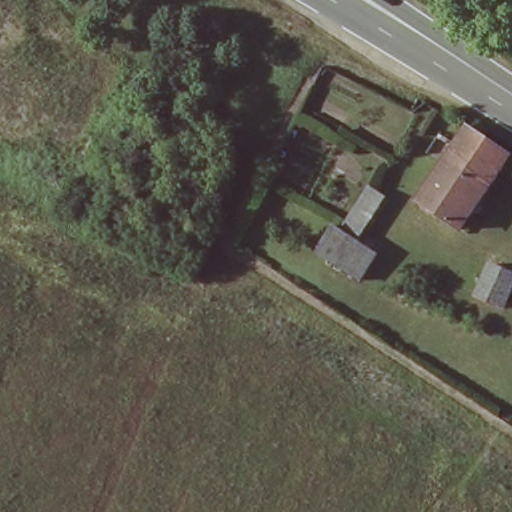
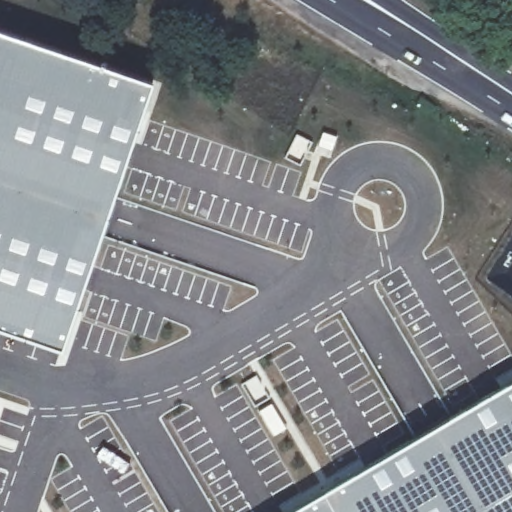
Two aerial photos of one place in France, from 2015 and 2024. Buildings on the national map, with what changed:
new [(113,203),(61,353),(19,340),(0,333),(0,30),(153,81),(113,203)]
unchanged [(468,131),(470,129),(512,156),(462,229),(420,202),(468,131)]
unchanged [(361,281),(317,253),(334,226),(342,231),(369,187),(386,198),(358,242),(379,256),(361,281)]
unchanged [(505,308),(477,297),(490,264),(512,273),(512,290),(505,308)]
new [(512,378),(512,512),(285,512),(512,378)]

